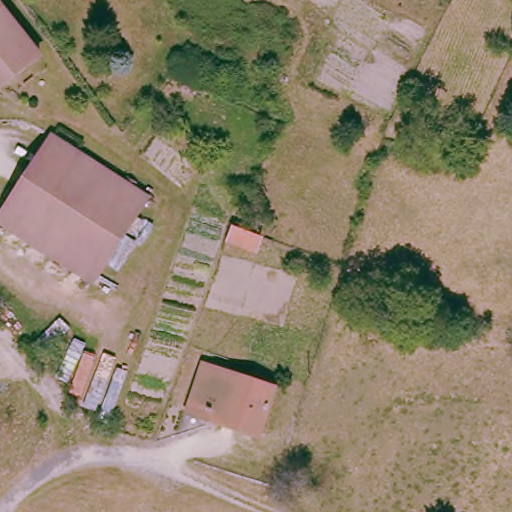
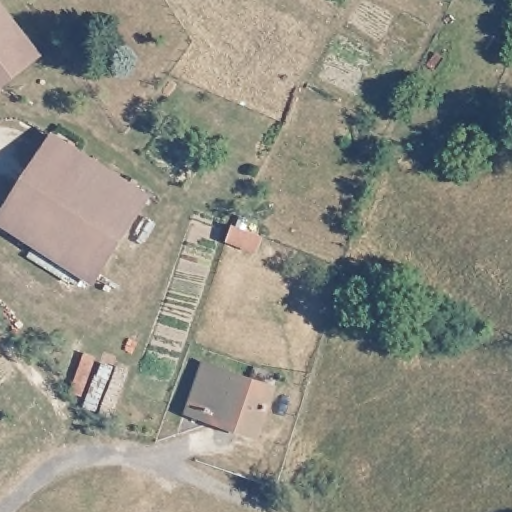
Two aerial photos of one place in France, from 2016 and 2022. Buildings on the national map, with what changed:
unchanged [(0,94),(0,0),(2,0),(47,56),(0,94)]
unchanged [(99,285),(4,226),(56,140),(152,200),(99,285)]
unchanged [(256,250),(227,239),(233,225),(262,236),(256,250)]
unchanged [(282,379),(277,393),(280,394),(266,441),(195,419),(209,371),(252,385),(257,372),(282,379)]

